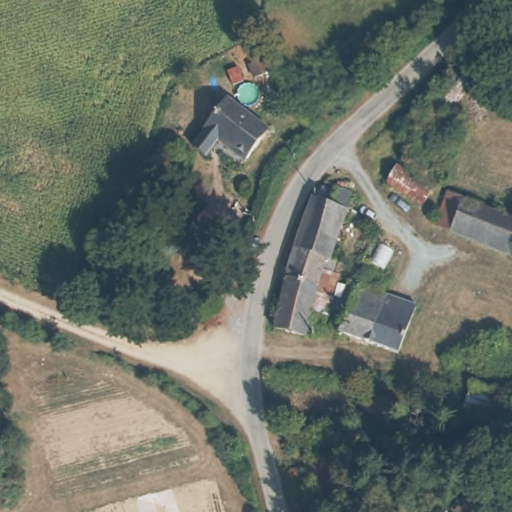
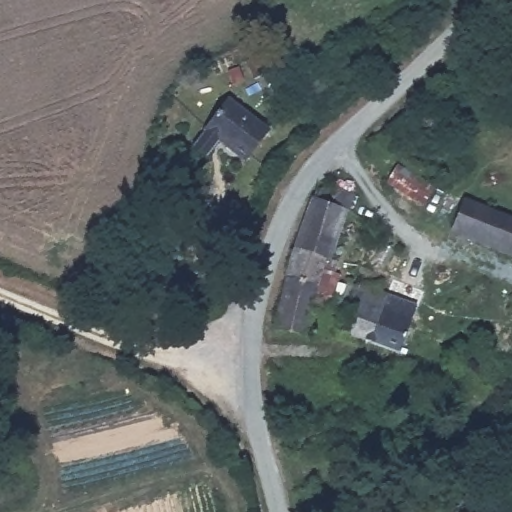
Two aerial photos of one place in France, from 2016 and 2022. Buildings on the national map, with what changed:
unchanged [(189,141),(185,139),(205,121),(233,99),(268,136),(241,160),(218,136),(200,154),(189,141)]
unchanged [(424,106),(458,122),(444,146),(440,151),(412,136),(424,106)]
unchanged [(429,187),(418,205),(381,183),(393,167),(429,187)]
unchanged [(299,230),(309,201),(313,190),(323,186),(353,196),(348,213),(343,211),(334,242),(299,230)]
unchanged [(512,219),(512,252),(511,256),(436,226),(452,194),(512,219)]
unchanged [(334,242),(327,265),(322,275),(333,278),(329,290),(327,297),(311,295),(313,285),(281,280),(299,230),(334,242)]
unchanged [(313,285),(311,295),(309,311),(309,317),(305,335),(274,335),(281,280),(313,285)]
unchanged [(327,297),(329,290),(344,295),(349,297),(354,286),(384,295),(367,345),(338,336),(341,316),(309,311),(311,295),(327,297)]
unchanged [(413,306),(397,356),(367,345),(384,295),(413,306)]
unchanged [(496,397),(489,428),(456,421),(464,388),(496,397)]

